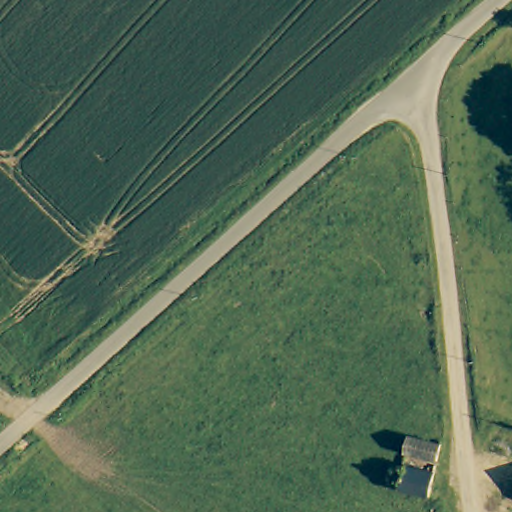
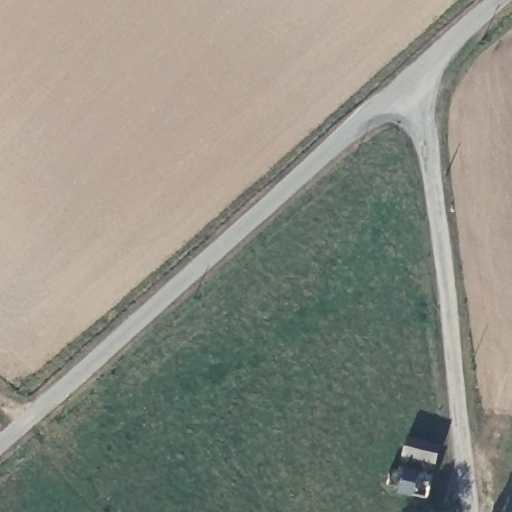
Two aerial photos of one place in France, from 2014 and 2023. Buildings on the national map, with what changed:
unchanged [(437,457),(405,454),(406,438),(428,439),(439,440),(437,457)]
unchanged [(432,497),(402,493),(403,489),(403,472),(403,469),(436,472),(432,497)]

